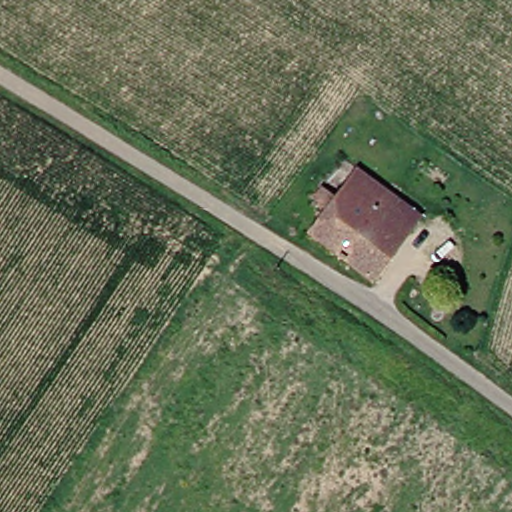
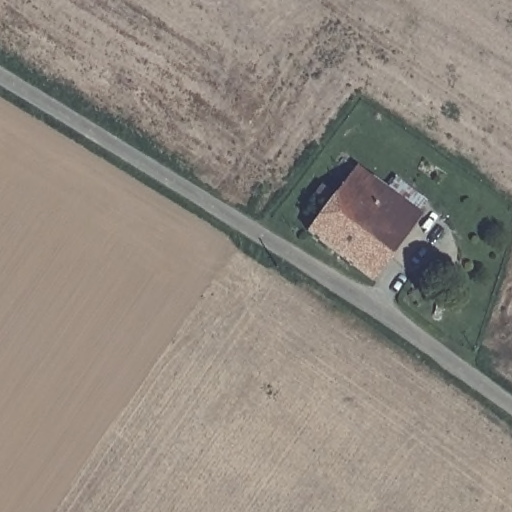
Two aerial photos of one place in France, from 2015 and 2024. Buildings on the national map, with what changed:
unchanged [(317,212),(303,201),(312,190),(327,199),(350,170),(413,217),(401,234),(383,221),(346,267),(301,232),(317,212)]
unchanged [(364,281),(346,267),(383,221),(401,234),(364,281)]

